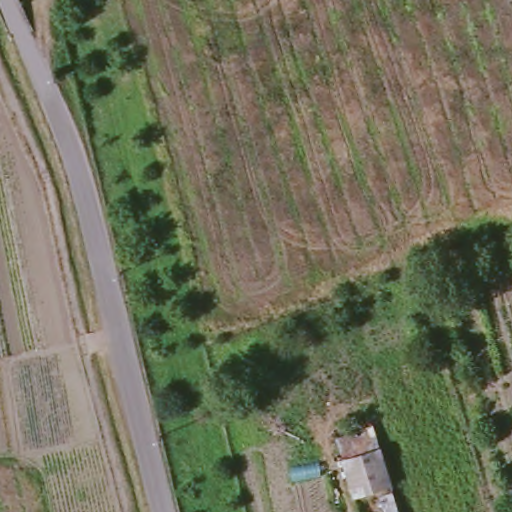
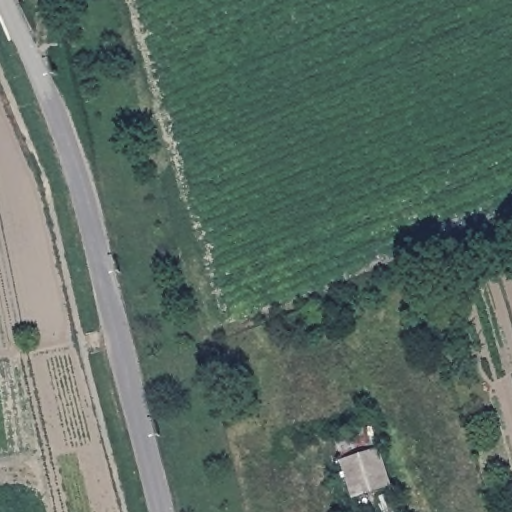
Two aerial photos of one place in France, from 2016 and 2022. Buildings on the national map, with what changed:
unchanged [(388,481),(353,492),(338,444),(374,434),(388,481)]

